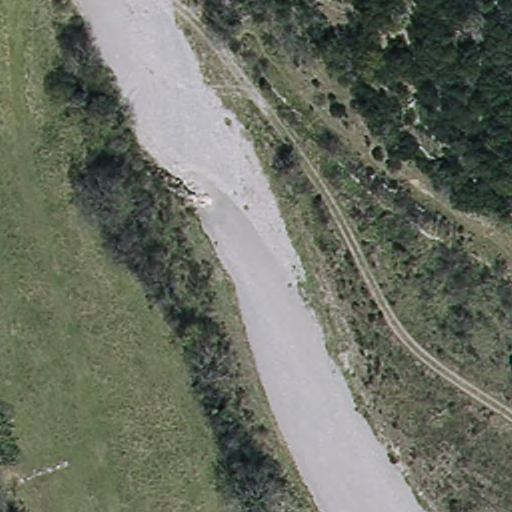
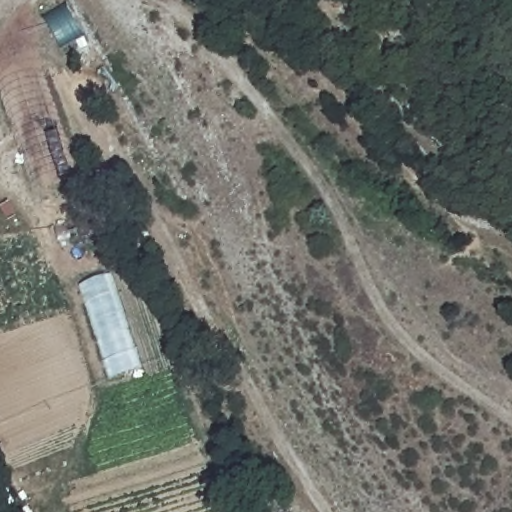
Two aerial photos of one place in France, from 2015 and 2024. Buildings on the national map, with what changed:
new [(110,380),(77,283),(106,274),(136,371),(110,380)]

